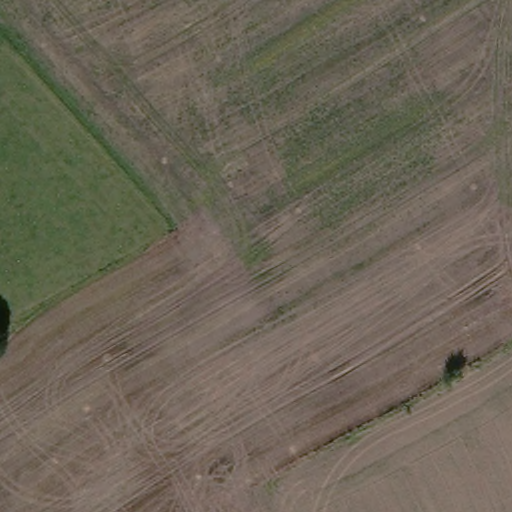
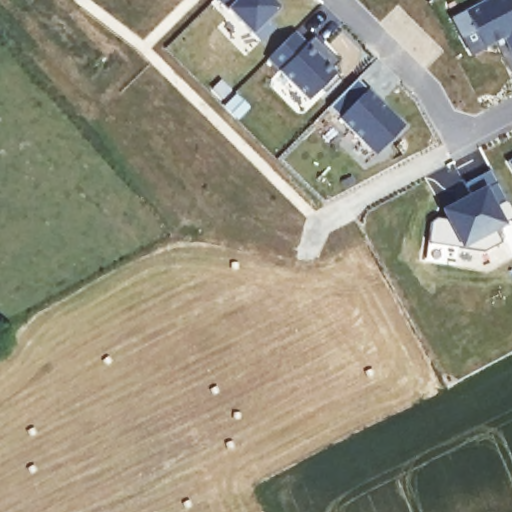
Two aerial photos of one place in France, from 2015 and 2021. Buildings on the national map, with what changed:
new [(285,5),(272,17),(280,24),(265,39),(226,0),(281,0),(285,5)]
new [(512,2),(512,52),(505,39),(485,49),(475,29),(462,36),(453,20),(490,0),(511,0),(512,2)]
new [(311,42),(319,34),(331,46),(344,60),(342,62),(336,68),(344,76),(328,92),(325,87),(313,98),(272,57),(299,30),(311,42)]
new [(362,78),(408,125),(380,153),(333,106),(362,78)]
new [(239,96),(250,108),(239,119),(227,107),(239,96)]
new [(512,157),(512,165),(508,159),(512,157)]
new [(463,181),(490,167),(512,209),(512,216),(493,226),(501,240),(483,249),(426,240),(430,218),(436,214),(447,216),(442,207),(457,200),(470,193),(463,181)]

